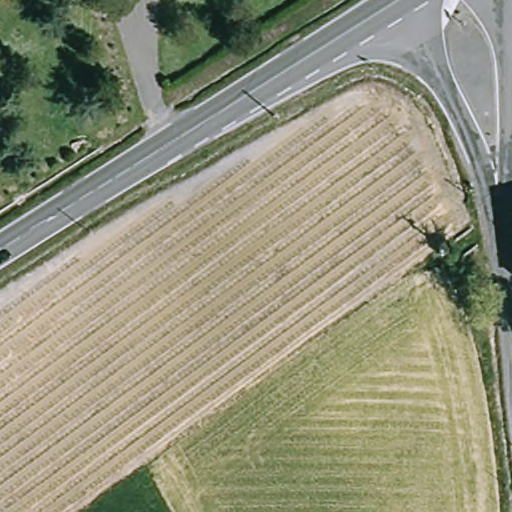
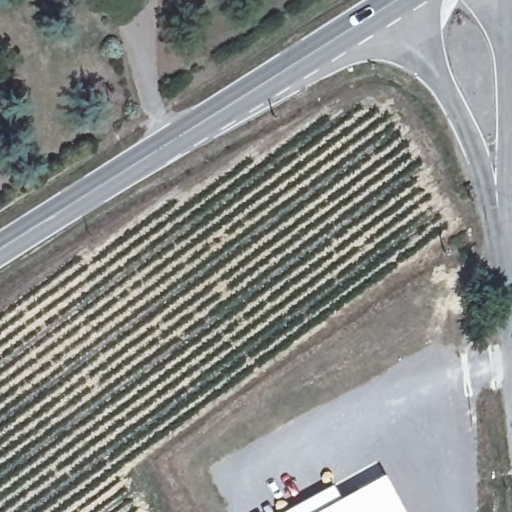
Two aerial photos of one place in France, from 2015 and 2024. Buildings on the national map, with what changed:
new [(404,512),(281,512),(332,484),(339,497),(383,473),(404,512)]

